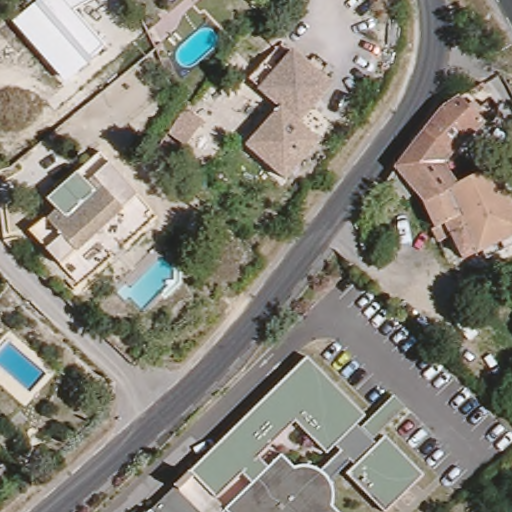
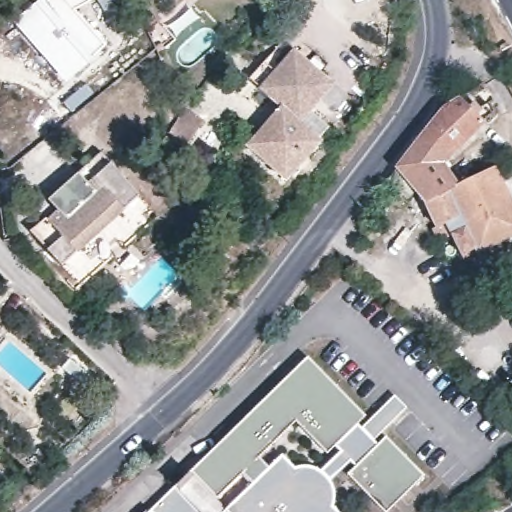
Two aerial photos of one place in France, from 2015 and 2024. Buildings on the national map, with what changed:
unchanged [(34,2),(78,56),(83,51),(41,0),(87,0),(70,11),(105,52),(65,85),(10,25),(34,2)]
unchanged [(279,107),(258,89),(246,79),(261,62),(273,72),(290,52),(328,87),(296,122),(279,107)]
unchanged [(490,255),(483,258),(482,255),(473,235),(458,242),(446,247),(440,235),(444,232),(433,207),(423,197),(415,204),(411,200),(409,202),(400,192),(401,191),(395,186),(404,174),(402,172),(448,114),(467,104),(480,117),(489,110),(496,117),(487,125),(490,127),(449,168),(463,190),(502,172),(512,196),(512,257),(494,266),(490,255)]
unchanged [(296,122),(316,141),(283,179),(245,145),(279,107),(296,122)]
unchanged [(153,152),(165,136),(178,146),(166,161),(153,152)]
unchanged [(128,212),(76,262),(62,247),(55,253),(39,237),(52,224),(55,226),(65,216),(56,206),(83,180),(93,190),(99,183),(128,212)]
unchanged [(181,486),(194,472),(304,357),(364,417),(390,397),(404,405),(381,430),(421,473),(383,512),(380,512),(345,476),(336,481),(337,485),(338,488),(339,493),(339,497),(338,501),(337,505),(337,506),(343,512),(154,512),(181,486)]

